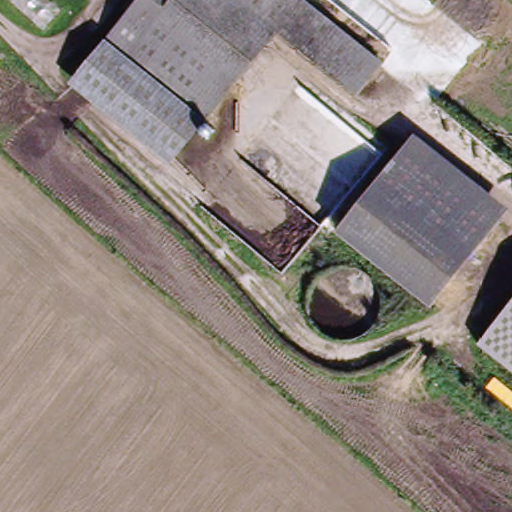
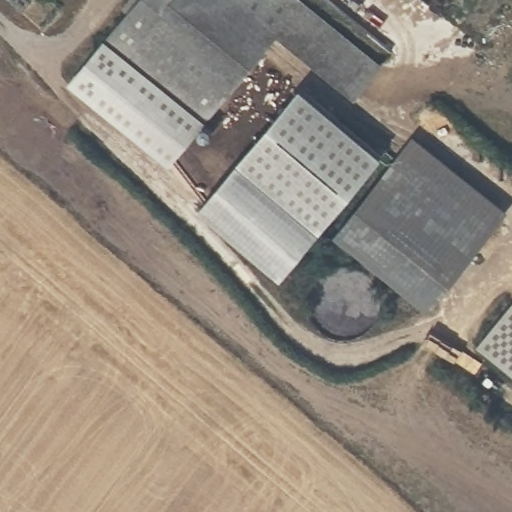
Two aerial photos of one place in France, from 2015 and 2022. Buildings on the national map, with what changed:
unchanged [(357,102),(278,36),(203,126),(130,69),(118,79),(95,60),(143,0),(304,0),(385,65),(357,102)]
unchanged [(118,79),(130,69),(203,126),(173,168),(70,91),(95,60),(118,79)]
new [(300,87),(383,155),(283,276),(201,208),(300,87)]
unchanged [(331,237),(410,137),(507,209),(426,316),(331,237)]
unchanged [(512,307),(512,378),(476,350),(512,307)]

